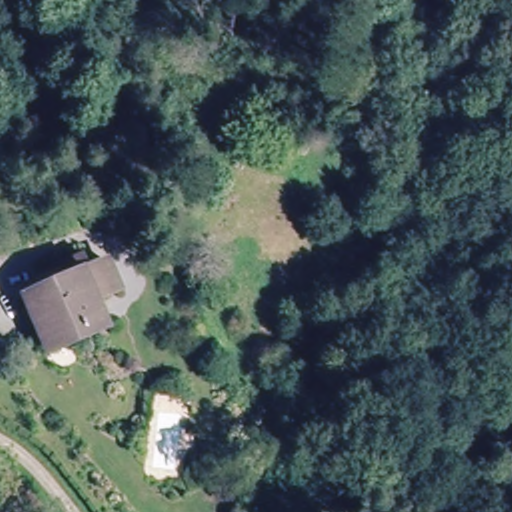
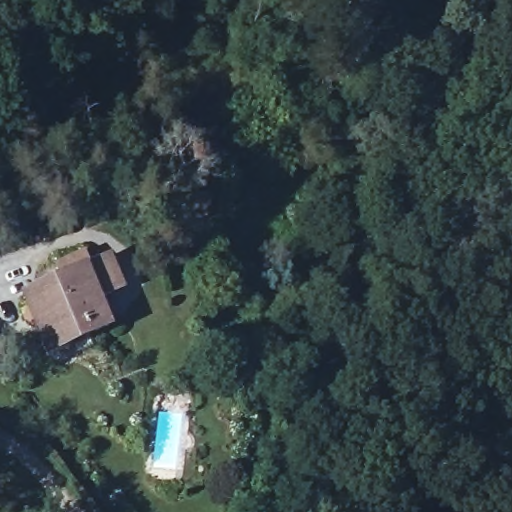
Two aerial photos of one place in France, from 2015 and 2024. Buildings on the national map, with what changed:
unchanged [(121,288),(97,299),(110,327),(87,336),(84,330),(44,347),(25,302),(60,285),(57,278),(108,256),(121,288)]
unchanged [(1,349),(0,350),(0,348),(1,349)]

